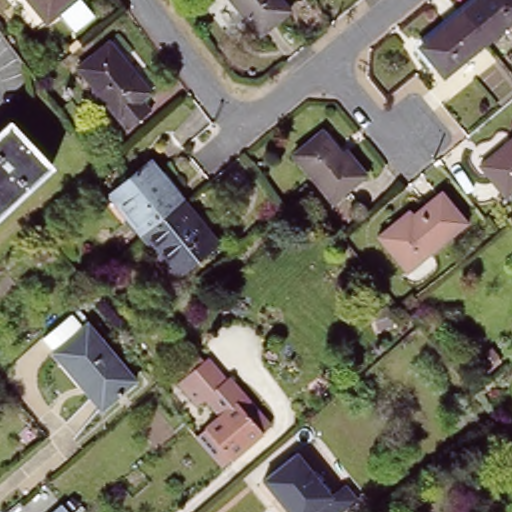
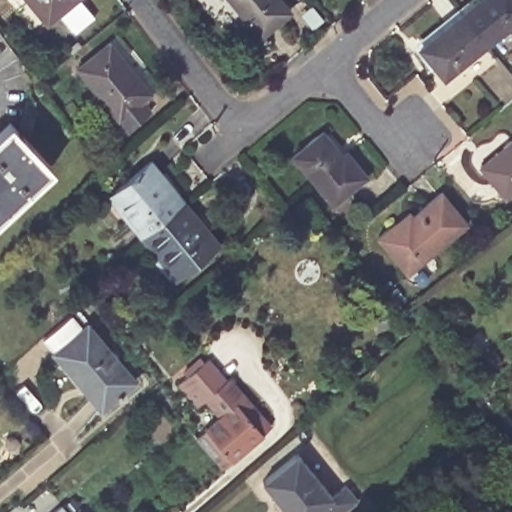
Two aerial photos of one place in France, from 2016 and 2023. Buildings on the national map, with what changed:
unchanged [(48,24),(28,0),(78,0),(48,24)]
unchanged [(295,15),(265,39),(234,0),(283,0),(295,15)]
unchanged [(479,0),(512,0),(512,25),(488,45),(463,14),(479,0)]
unchanged [(445,81),(420,49),(463,14),(488,45),(445,81)]
unchanged [(151,99),(142,106),(152,118),(130,137),(78,73),(108,48),(151,99)]
unchanged [(50,169),(0,216),(0,136),(10,127),(50,169)]
unchanged [(344,159),(348,155),(368,179),(335,206),(295,158),(324,134),(344,159)]
unchanged [(481,167),(512,141),(512,190),(505,196),(481,167)]
unchanged [(143,242),(110,201),(152,166),(185,206),(143,242)]
unchanged [(466,230),(406,278),(375,241),(405,216),(408,219),(438,195),(466,230)]
unchanged [(221,249),(178,283),(143,242),(185,206),(221,249)]
unchanged [(136,382),(102,413),(55,356),(87,328),(136,382)]
unchanged [(225,385),(266,433),(226,468),(200,436),(217,421),(203,405),(193,412),(182,399),(175,390),(202,366),(210,376),(221,389),(225,385)]
unchanged [(321,512),(287,512),(261,480),(295,451),(336,500),(321,512)]

